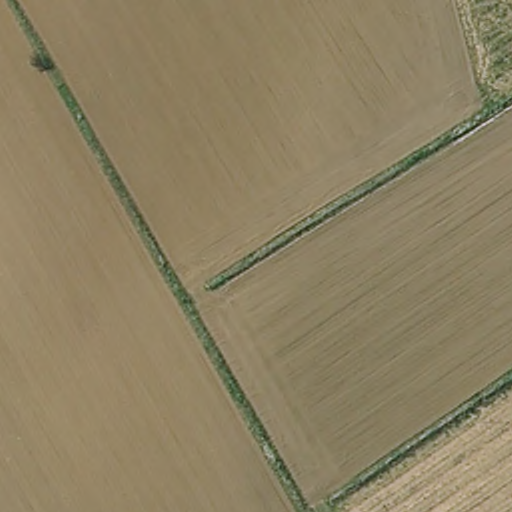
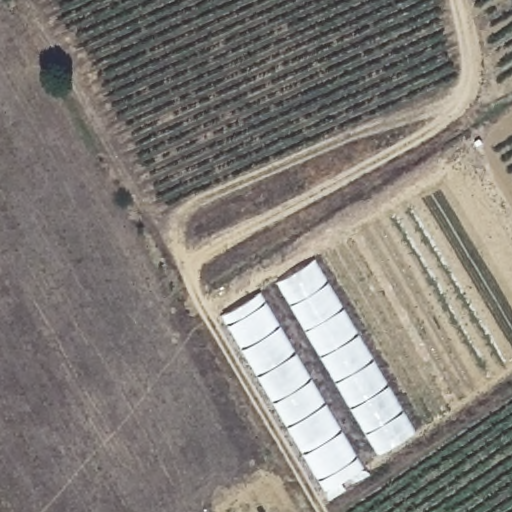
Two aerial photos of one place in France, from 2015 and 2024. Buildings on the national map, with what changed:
new [(311,258),(412,431),(373,453),(272,282),(311,258)]
new [(217,314),(257,291),(359,467),(321,490),(217,314)]

